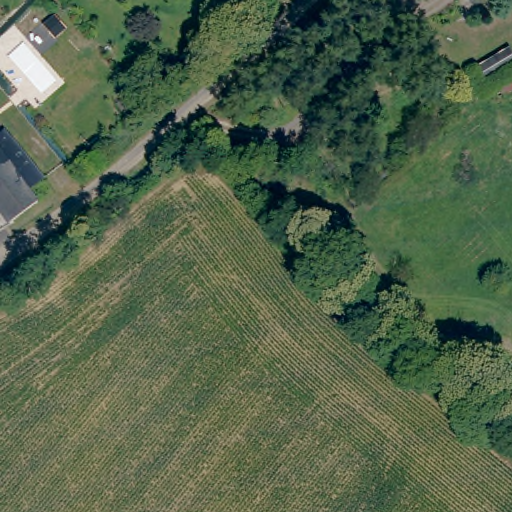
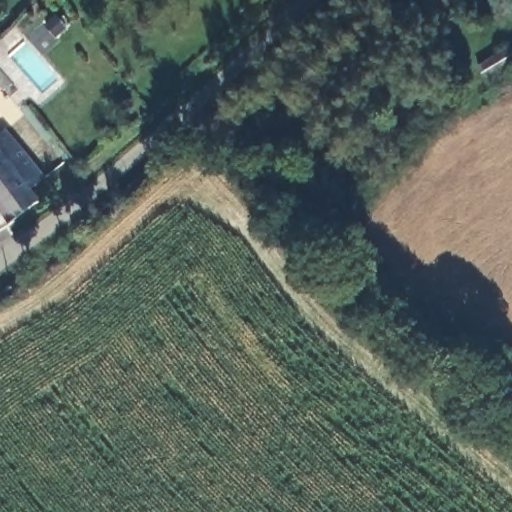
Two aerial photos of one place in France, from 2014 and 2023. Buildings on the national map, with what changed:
unchanged [(0,213),(0,118),(1,117),(20,143),(46,182),(31,192),(40,204),(10,226),(0,213)]

